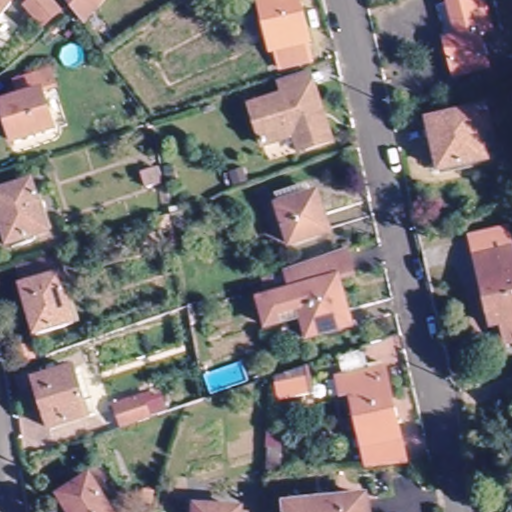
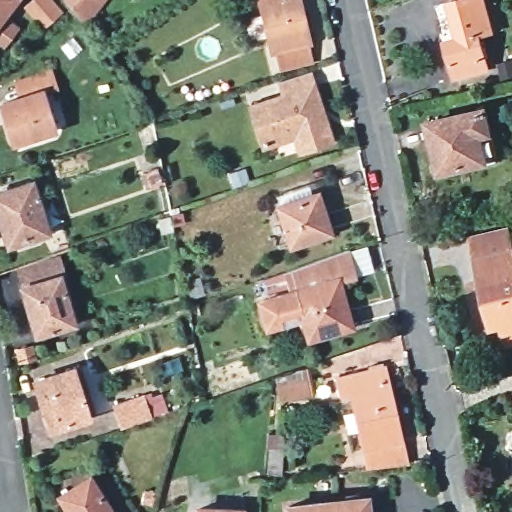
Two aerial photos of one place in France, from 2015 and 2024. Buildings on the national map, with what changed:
unchanged [(0,18),(0,0),(9,0),(12,3),(0,18)]
unchanged [(64,16),(46,35),(24,13),(35,0),(48,0),(64,16)]
unchanged [(62,1),(63,0),(106,0),(100,7),(85,28),(74,15),(62,1)]
unchanged [(286,1),(289,0),(291,0),(304,53),(300,54),(305,71),(277,78),(273,61),(268,62),(255,8),(258,7),(256,0),(286,0),(286,1)]
unchanged [(488,69),(456,78),(446,42),(460,38),(450,2),(457,0),(484,0),(492,31),(479,35),(488,69)]
unchanged [(54,131),(15,143),(2,104),(22,98),(17,83),(50,72),(56,88),(41,93),(54,131)]
unchanged [(305,157),(300,141),(268,152),(255,112),(290,101),(285,87),(302,81),(314,77),(318,91),(324,109),(330,125),(336,146),(305,157)]
unchanged [(485,110),(497,158),(441,171),(430,123),(485,110)]
unchanged [(161,197),(147,200),(144,185),(159,182),(161,197)]
unchanged [(47,232),(9,244),(0,216),(0,193),(31,184),(47,232)]
unchanged [(291,246),(278,207),(280,206),(276,196),(308,185),(312,196),(317,194),(330,233),(291,246)]
unchanged [(185,222),(174,224),(172,218),(171,215),(182,213),(185,222)]
unchanged [(174,228),(164,232),(160,220),(170,217),(174,228)]
unchanged [(267,327),(260,301),(268,299),(263,280),(286,271),(330,256),(346,250),(354,276),(338,281),(351,327),(308,338),(302,317),(267,327)]
unchanged [(502,324),(492,327),(477,261),(512,252),(512,343),(507,345),(502,324)]
unchanged [(41,341),(30,305),(26,292),(31,291),(27,275),(61,265),(65,281),(80,329),(41,341)]
unchanged [(390,376),(391,375),(405,435),(410,458),(375,463),(370,443),(370,444),(357,391),(347,393),(343,373),(388,363),(390,376)]
unchanged [(50,430),(39,395),(35,382),(40,380),(74,369),(80,367),(90,401),(85,403),(90,418),(50,430)]
unchanged [(277,406),(276,391),(276,387),(292,381),(307,376),(308,389),(310,404),(277,406)]
unchanged [(115,406),(142,397),(145,405),(154,402),(159,416),(150,419),(123,428),(115,406)]
unchanged [(70,512),(60,496),(90,478),(110,512),(70,512)]
unchanged [(362,512),(284,512),(282,502),(360,494),(362,512)]
unchanged [(198,512),(198,509),(241,511),(241,512),(198,512)]

